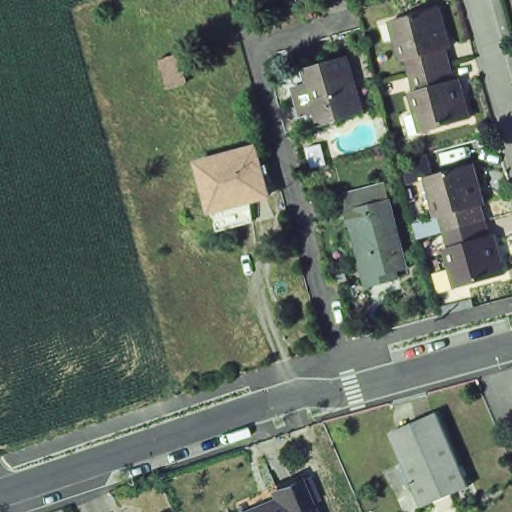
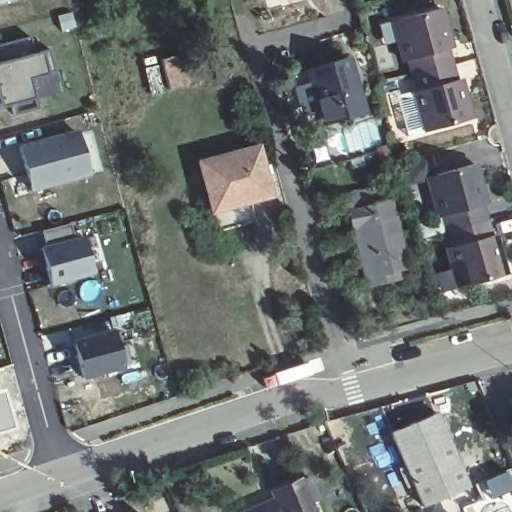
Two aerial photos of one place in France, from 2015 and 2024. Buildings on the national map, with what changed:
unchanged [(421,116),(415,94),(420,92),(416,76),(412,61),(407,63),(400,41),(405,40),(400,21),(444,10),(450,31),(445,31),(450,51),(454,66),(458,81),(463,101),(468,99),(474,121),(432,133),(415,137),(410,119),(421,116)]
new [(27,38),(31,55),(46,51),(52,74),(25,81),(33,110),(14,115),(12,106),(0,109),(0,86),(2,85),(0,76),(0,45),(27,38)]
unchanged [(181,56),(189,84),(172,89),(163,61),(181,56)]
unchanged [(298,93),(314,88),(311,76),(351,64),(365,118),(325,129),(322,118),(306,122),(298,93)]
new [(30,192),(17,146),(78,129),(90,176),(30,192)]
unchanged [(217,227),(211,207),(197,159),(257,143),(268,191),(250,196),(252,217),(217,227)]
unchanged [(478,165),(484,186),(480,187),(490,223),(450,233),(447,217),(441,217),(437,198),(440,197),(435,176),(478,165)]
unchanged [(361,283),(355,262),(351,250),(343,223),(339,206),(380,195),(398,262),(368,271),(370,280),(361,283)]
unchanged [(502,254),(508,276),(465,287),(460,268),(455,269),(450,251),(455,248),(450,233),(490,223),(498,256),(502,254)]
new [(50,267),(45,250),(42,251),(42,249),(47,248),(42,232),(71,224),(76,240),(85,238),(95,273),(52,285),(47,267),(50,267)]
new [(82,381),(72,341),(113,330),(125,369),(82,381)]
new [(12,428),(0,432),(0,388),(12,428)]
unchanged [(437,415),(470,488),(422,508),(390,435),(437,415)]
unchanged [(238,509),(300,483),(312,512),(240,512),(238,509)]

